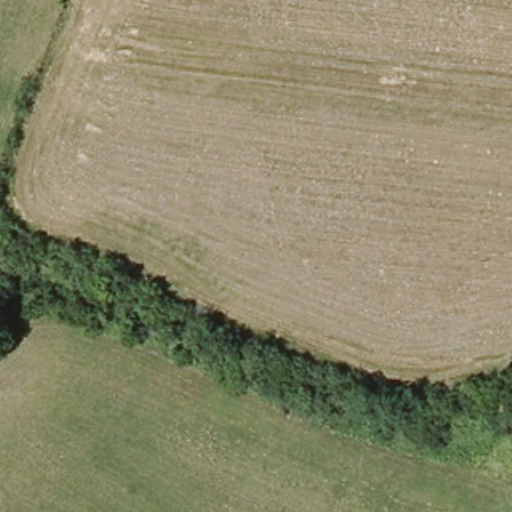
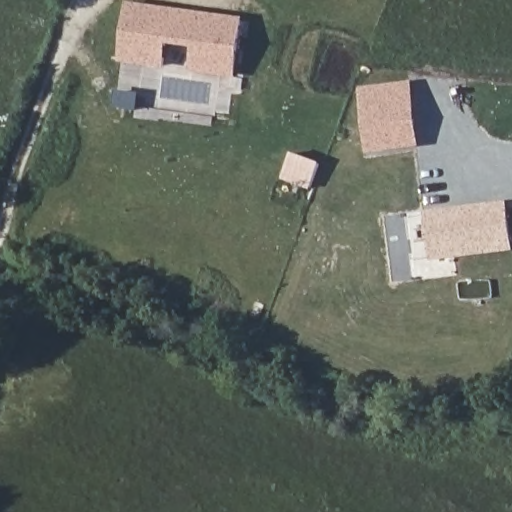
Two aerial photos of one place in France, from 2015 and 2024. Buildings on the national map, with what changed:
new [(133,8),(245,22),(238,78),(197,73),(200,48),(170,43),(167,68),(126,63),(133,8)]
new [(368,155),(360,88),(412,81),(420,148),(368,155)]
new [(295,157),(324,167),(316,191),(287,181),(295,157)]
new [(429,247),(424,213),(447,210),(453,209),(502,203),(508,247),(451,255),(430,257),(429,247)]

